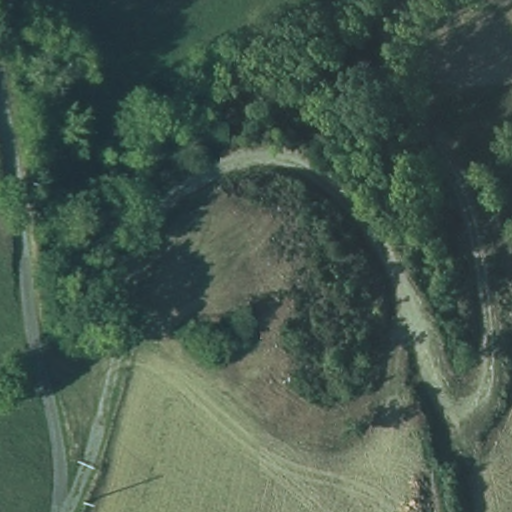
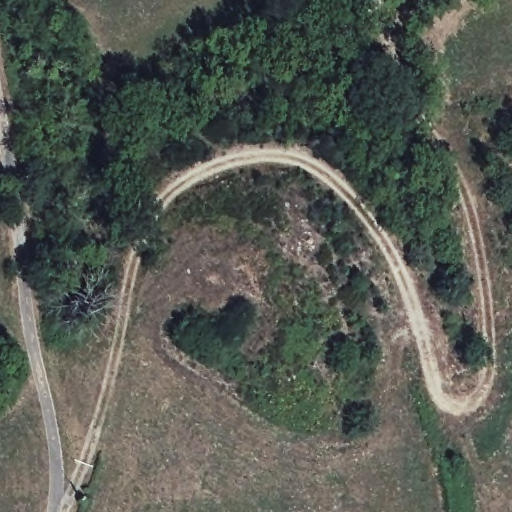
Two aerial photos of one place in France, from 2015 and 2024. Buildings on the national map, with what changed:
[]

